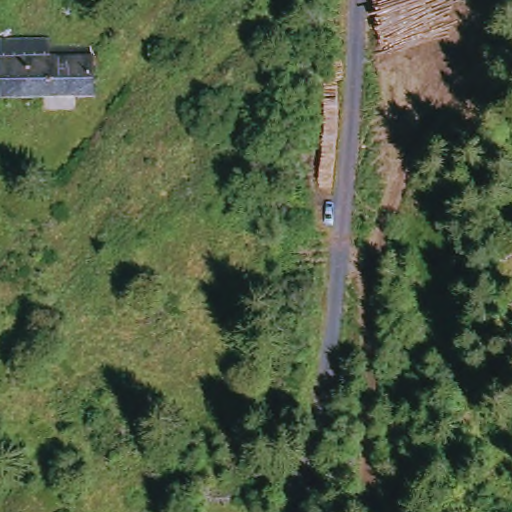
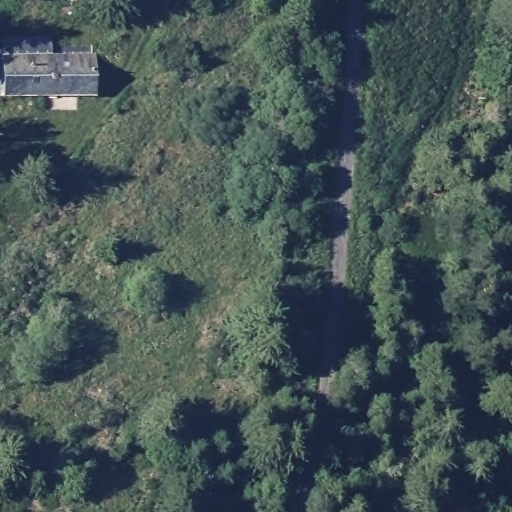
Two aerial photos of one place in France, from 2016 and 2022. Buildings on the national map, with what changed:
unchanged [(4,65),(4,54),(90,58),(90,68),(88,97),(4,94),(4,65)]

